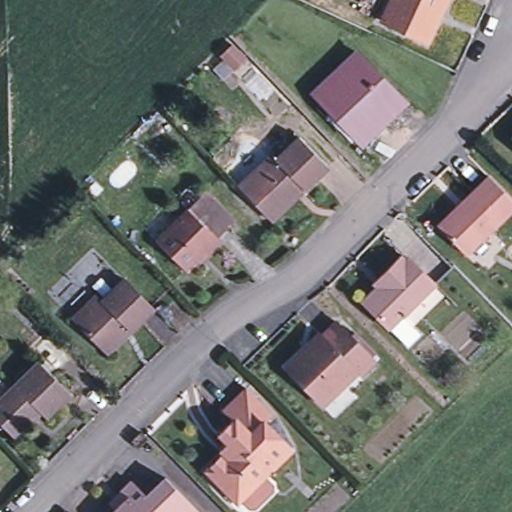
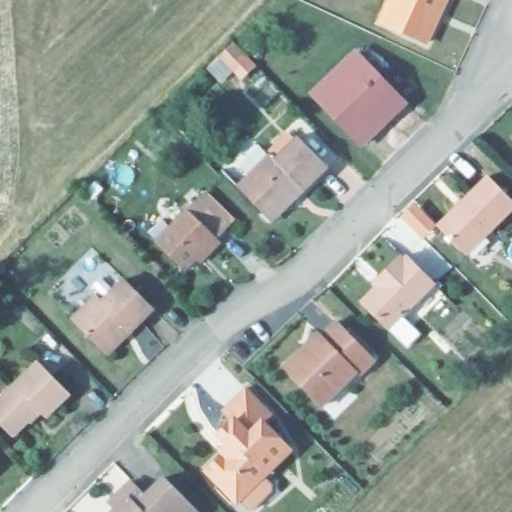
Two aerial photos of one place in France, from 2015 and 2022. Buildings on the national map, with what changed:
unchanged [(442,0),(434,16),(439,18),(428,41),(382,19),(391,0),(442,0)]
unchanged [(377,127),(362,142),(324,102),(350,77),(340,66),(357,49),(395,89),(406,100),(377,127)]
unchanged [(271,209),(240,178),(275,146),(280,151),(304,128),(333,159),(309,183),(277,215),(271,209)]
unchanged [(512,205),(512,212),(462,257),(434,226),(487,178),(512,205)]
unchanged [(206,254),(203,251),(182,270),(155,243),(188,210),(204,195),(232,223),(216,238),(219,242),(206,254)]
unchanged [(382,273),(380,271),(403,249),(435,283),(390,328),(359,297),(382,273)]
unchanged [(95,293),(102,299),(124,278),(151,307),(107,351),(72,316),(95,293)]
unchanged [(320,330),(322,333),(337,320),(375,361),(359,376),(356,373),(323,404),(284,364),(320,330)]
unchanged [(69,392),(45,415),(39,409),(12,434),(0,422),(0,375),(12,387),(39,361),(69,392)]
unchanged [(272,493),(254,509),(249,509),(240,500),(238,502),(209,472),(230,453),(231,454),(235,451),(222,436),(236,423),(227,412),(248,393),(272,419),(265,425),(291,452),(264,478),(272,488),(272,493)]
unchanged [(127,505),(120,498),(134,485),(147,499),(167,481),(197,512),(120,512),(127,505)]

